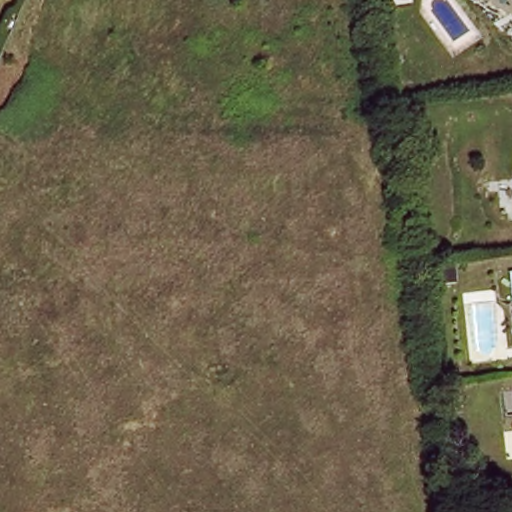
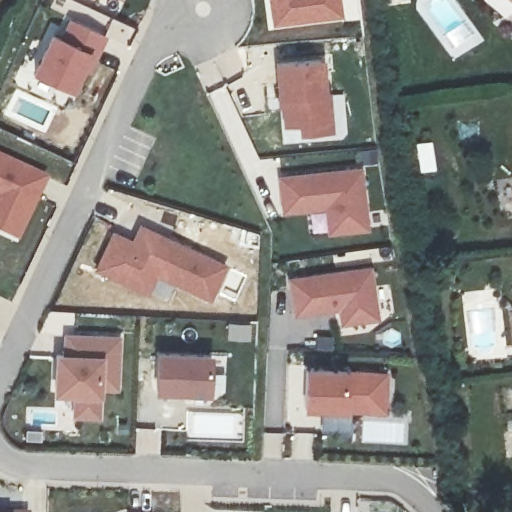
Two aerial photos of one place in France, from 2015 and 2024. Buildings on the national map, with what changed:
new [(273,26),(270,0),(340,0),(342,16),(273,26)]
unchanged [(507,0),(512,0),(512,6),(511,5),(507,0)]
new [(62,37),(68,18),(107,36),(89,73),(82,70),(73,92),(33,73),(51,32),(62,37)]
new [(324,59),(328,91),(332,90),(334,131),(300,136),(299,125),(283,127),(283,106),(278,106),(276,64),(324,59)]
new [(45,174),(17,239),(0,230),(0,152),(45,174)]
new [(361,164),(369,227),(327,233),(324,208),(281,213),(278,175),(361,164)]
new [(132,240),(139,222),(226,264),(208,302),(157,275),(148,295),(93,268),(112,231),(132,240)]
new [(373,265),(379,319),(341,327),(338,309),(293,317),(287,277),(373,265)]
new [(62,352),(63,332),(121,332),(118,390),(102,388),(102,397),(100,417),(73,417),(72,397),(53,397),(56,352),(62,352)]
new [(215,355),(213,396),(154,393),(157,351),(215,355)]
new [(348,370),(388,371),(386,415),(347,409),(346,413),(303,410),(306,366),(348,370)]
new [(12,506),(27,507),(27,512),(11,512),(12,506)]

